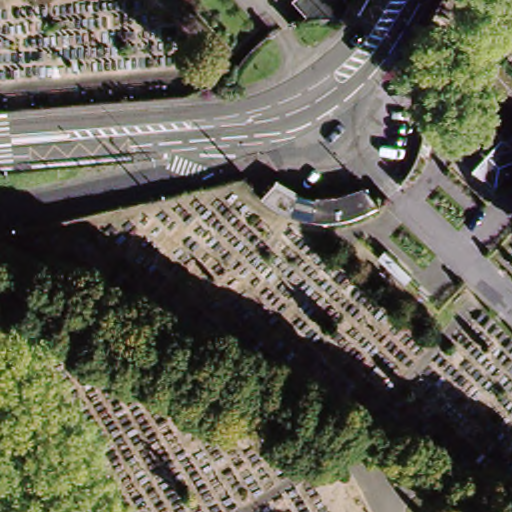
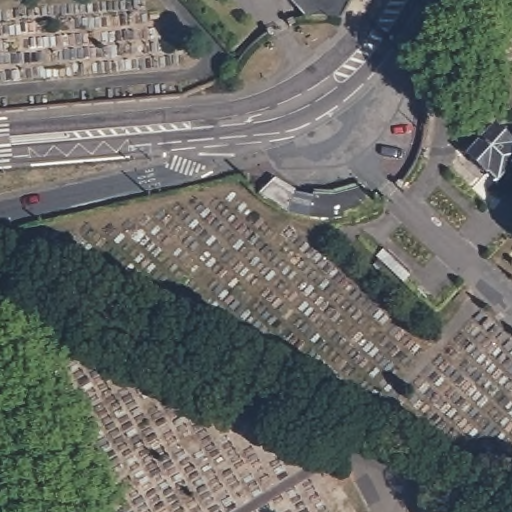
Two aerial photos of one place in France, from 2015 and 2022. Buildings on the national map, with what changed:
unchanged [(292,0),(343,0),(347,4),(338,19),(306,25),(289,2),(292,0)]
unchanged [(512,107),(482,81),(492,67),(512,84),(512,107)]
unchanged [(482,172),(478,177),(462,164),(491,129),(497,134),(502,129),(509,136),(512,132),(512,168),(497,186),(482,172)]
unchanged [(333,221),(327,221),(321,221),(315,221),(312,220),(310,220),(304,219),(298,218),(292,216),(290,215),(287,214),(284,213),(279,210),(270,205),(265,203),(262,200),(258,197),(273,182),(292,194),(292,195),(312,197),(335,198),(343,196),(352,193),(363,187),(377,206),(372,209),(367,211),(362,213),(357,215),(350,217),(346,218),(342,219),(340,219),(334,221),(333,221)]

